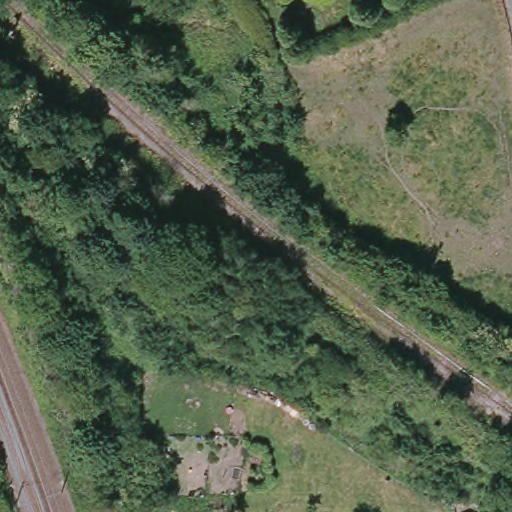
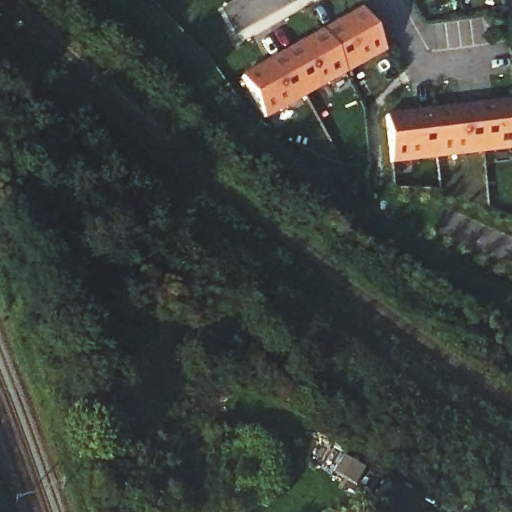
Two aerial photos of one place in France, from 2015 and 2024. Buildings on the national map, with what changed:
demolished [(167,16),(162,5),(170,0),(196,0),(167,16)]
new [(361,10),(382,48),(265,115),(243,79),(361,10)]
demolished [(277,68),(248,81),(247,82),(240,69),(272,55),(273,59),(277,68)]
new [(512,101),(512,148),(392,161),(386,116),(512,101)]
demolished [(238,175),(198,130),(218,111),(255,155),(238,175)]

